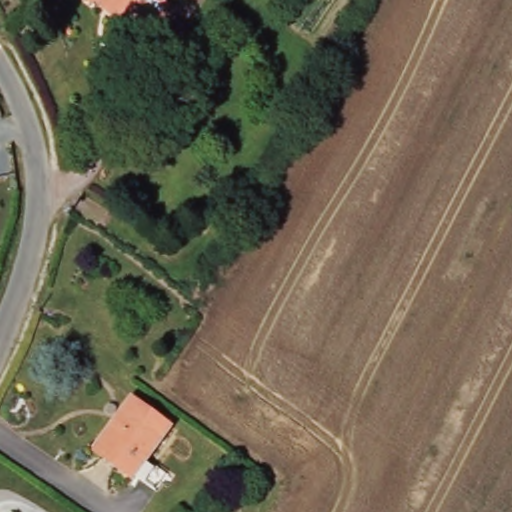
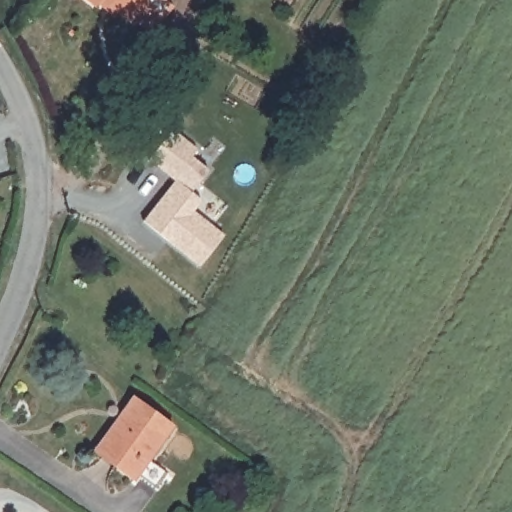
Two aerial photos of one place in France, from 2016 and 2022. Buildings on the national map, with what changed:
unchanged [(96,9),(85,0),(146,0),(127,24),(102,2),(96,9)]
unchanged [(127,24),(146,0),(173,0),(177,4),(150,39),(127,24)]
new [(175,182),(149,161),(172,131),(197,150),(191,157),(208,171),(191,193),(202,201),(193,212),(224,236),(200,267),(143,223),(161,200),(175,182)]
unchanged [(97,454),(134,399),(173,424),(137,481),(97,454)]

